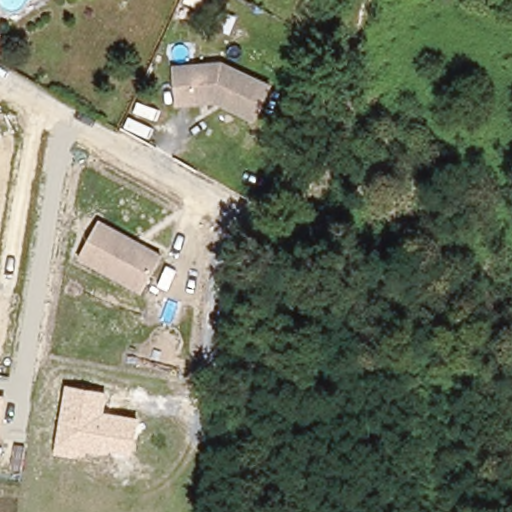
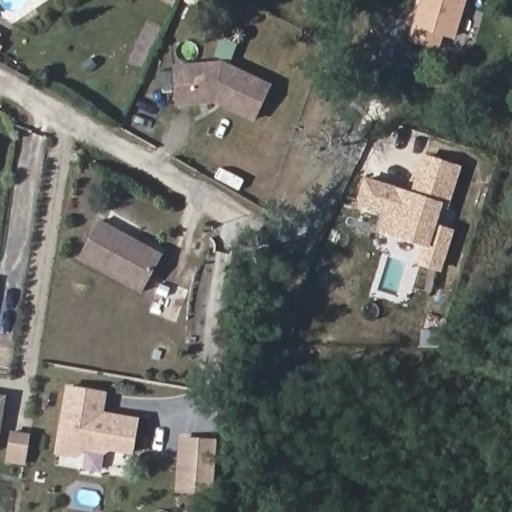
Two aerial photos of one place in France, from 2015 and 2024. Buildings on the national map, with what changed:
new [(440,51),(407,41),(420,0),(467,0),(455,39),(444,36),(440,51)]
unchanged [(188,54),(223,49),(273,69),(259,104),(220,88),(180,94),(178,78),(175,56),(188,54)]
new [(383,215),(354,205),(363,176),(411,191),(423,153),(462,165),(448,211),(443,225),(455,229),(441,272),(417,265),(423,246),(378,232),(383,215)]
unchanged [(166,255),(143,294),(79,259),(99,218),(166,255)]
unchanged [(103,413),(138,417),(133,456),(108,451),(105,454),(85,451),(75,458),(55,454),(64,385),(105,391),(103,413)]
unchanged [(6,396),(0,434),(0,395),(6,396)]
new [(210,494),(174,492),(178,436),(214,439),(210,494)]

